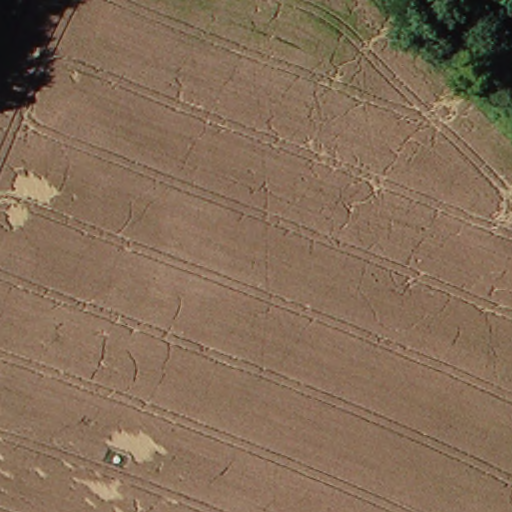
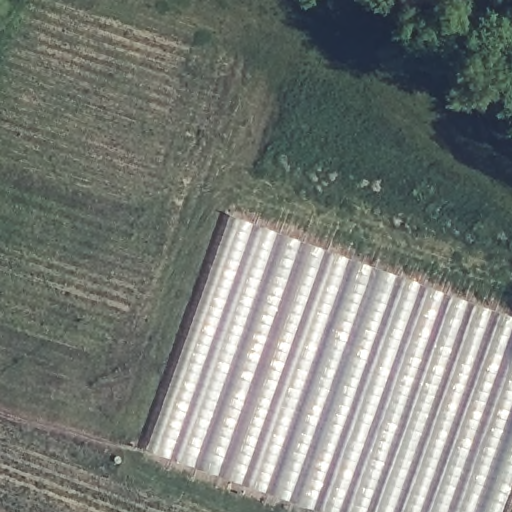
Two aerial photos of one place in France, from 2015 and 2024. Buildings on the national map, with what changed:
new [(149,453),(221,220),(512,320),(512,488),(504,512),(316,512),(149,453)]

